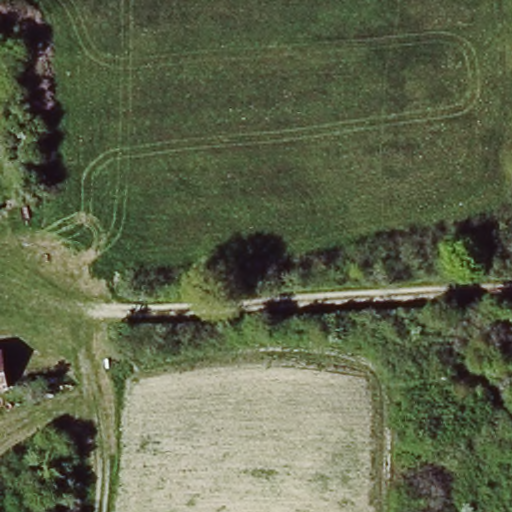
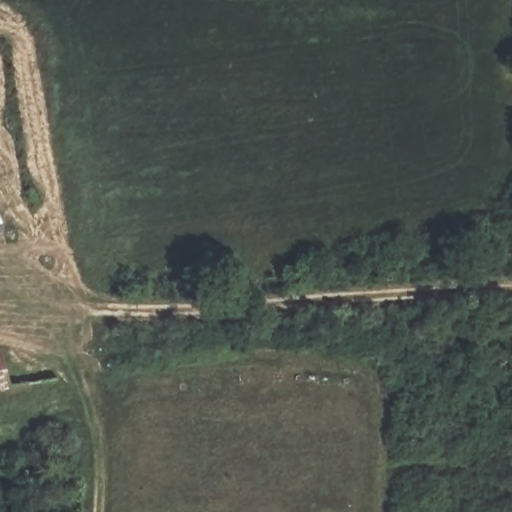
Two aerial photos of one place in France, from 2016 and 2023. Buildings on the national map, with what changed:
unchanged [(0,388),(0,344),(8,387),(0,388)]

